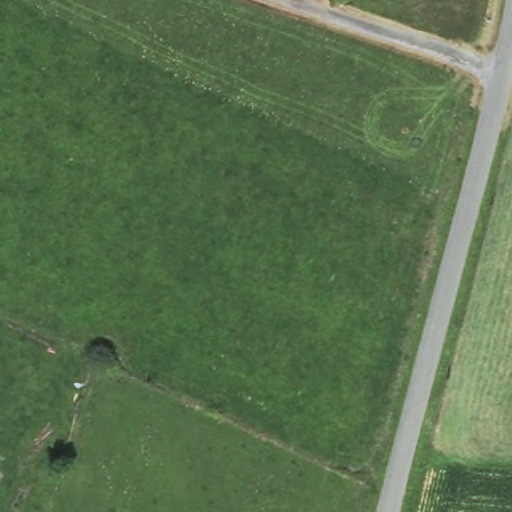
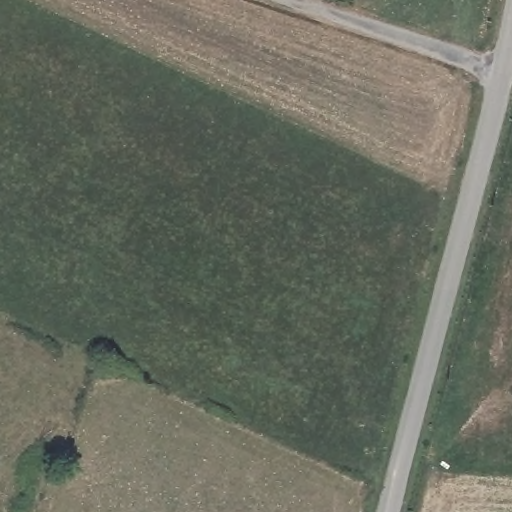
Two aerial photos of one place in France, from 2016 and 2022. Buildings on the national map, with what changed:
[]

